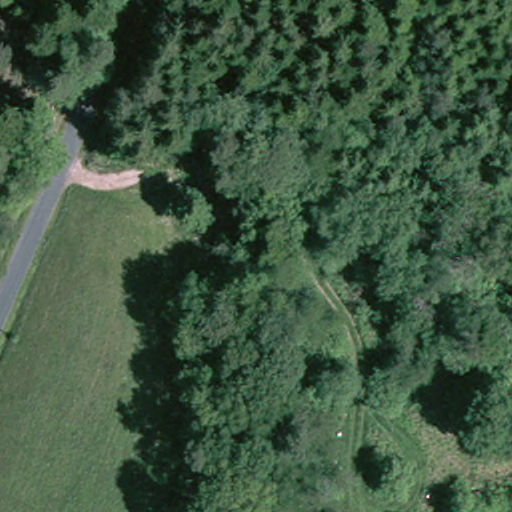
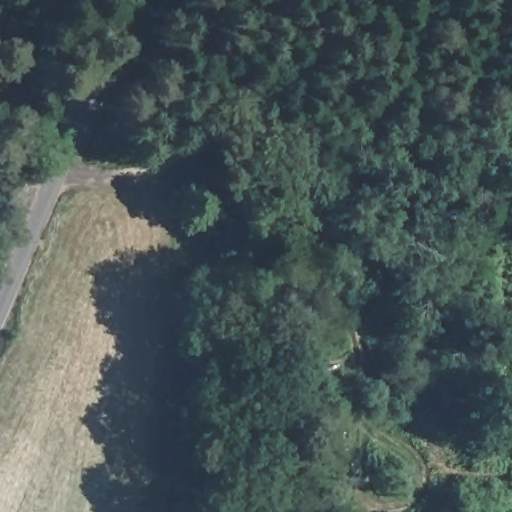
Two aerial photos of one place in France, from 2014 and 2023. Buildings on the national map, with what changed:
[]

